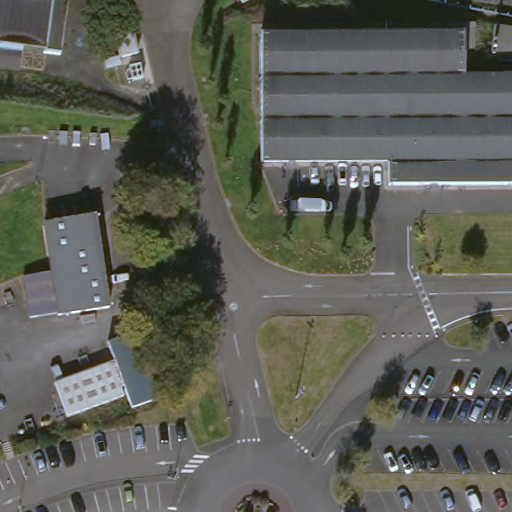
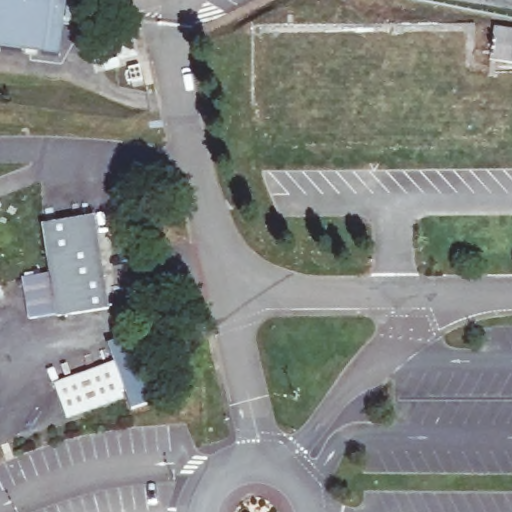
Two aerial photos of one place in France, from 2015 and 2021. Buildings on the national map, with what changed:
unchanged [(52,55),(49,75),(27,72),(29,52),(0,48),(0,0),(72,0),(66,57),(52,55)]
unchanged [(490,57),(496,25),(512,27),(512,60),(490,57)]
demolished [(393,187),(392,165),(264,164),(263,37),(465,34),(466,75),(512,75),(512,185),(393,187)]
unchanged [(26,278),(51,276),(42,227),(94,217),(109,310),(32,318),(26,278)]
unchanged [(116,365),(104,335),(130,325),(154,391),(72,422),(59,387),(116,365)]

